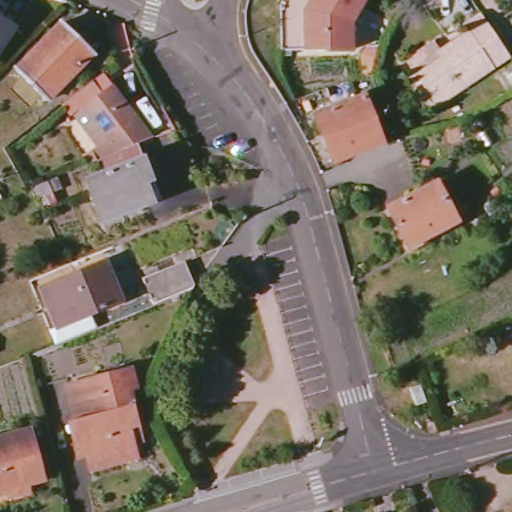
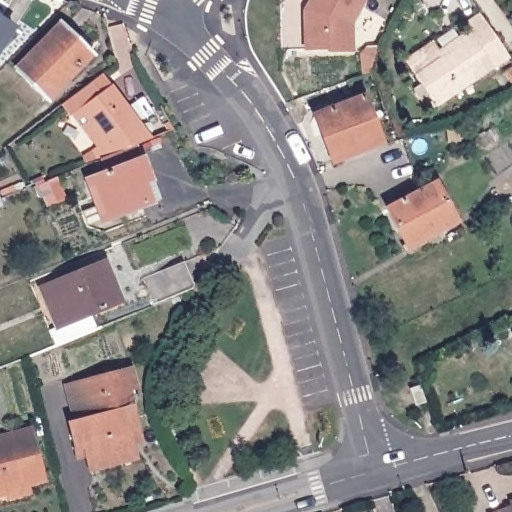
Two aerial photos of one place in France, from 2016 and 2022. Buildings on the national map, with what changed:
unchanged [(308,0),(359,0),(346,24),(346,53),(321,53),(321,51),(301,50),(302,10),(308,0)]
unchanged [(0,49),(0,17),(14,27),(0,49)]
unchanged [(433,58),(462,37),(458,30),(476,19),(504,61),(430,111),(412,80),(407,74),(433,58)]
unchanged [(16,70),(64,21),(95,51),(48,101),(16,70)]
unchanged [(103,74),(113,87),(138,121),(108,143),(79,105),(68,114),(62,106),(93,81),(103,74)]
unchanged [(326,135),(323,136),(316,116),(365,98),(383,143),(338,161),(326,135)]
unchanged [(459,128),(461,141),(449,144),(448,130),(459,128)]
unchanged [(135,145),(141,160),(142,160),(152,183),(143,186),(149,204),(104,223),(88,180),(108,172),(103,157),(135,145)]
unchanged [(37,187),(54,180),(58,191),(41,198),(37,187)]
unchanged [(437,183),(458,222),(442,231),(409,248),(389,209),(424,190),(437,183)]
unchanged [(41,288),(105,262),(122,302),(58,328),(41,288)]
unchanged [(194,289),(153,306),(143,282),(185,264),(196,287),(194,289)]
unchanged [(86,467),(83,457),(73,460),(70,447),(73,446),(65,421),(73,419),(64,387),(126,369),(131,389),(124,391),(134,426),(136,426),(141,442),(129,447),(131,454),(133,461),(88,473),(86,467)]
unchanged [(0,434),(30,426),(43,475),(31,479),(33,490),(8,496),(5,488),(0,489),(0,434)]
unchanged [(512,509),(512,512),(505,512),(512,509)]

